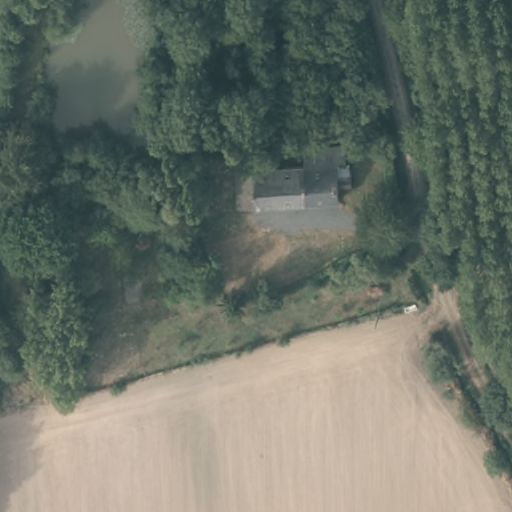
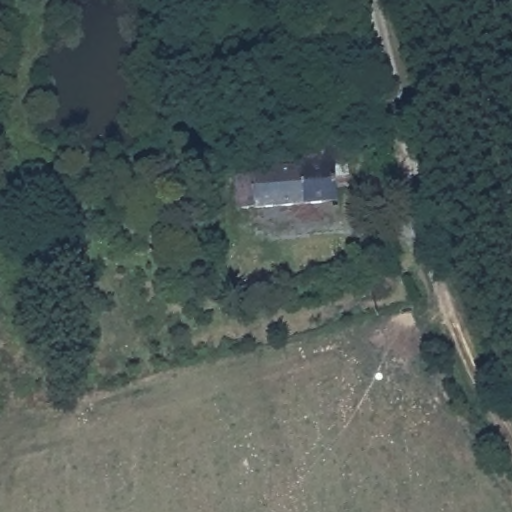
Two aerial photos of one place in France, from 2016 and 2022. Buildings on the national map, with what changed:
unchanged [(301,167),(304,141),(348,144),(345,172),(331,172),(326,202),(298,199),(301,167)]
unchanged [(235,182),(235,161),(252,163),(301,167),(298,199),(234,193),(235,182)]

